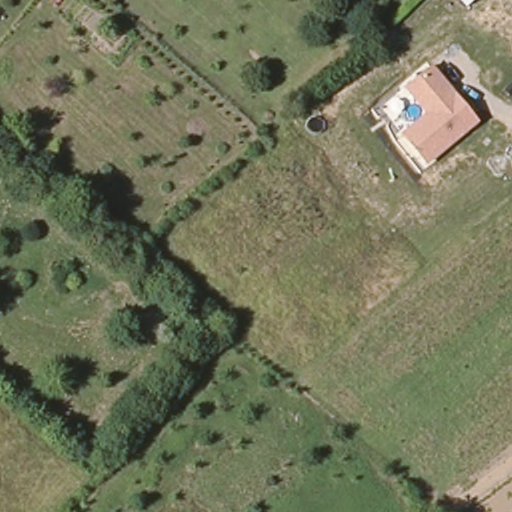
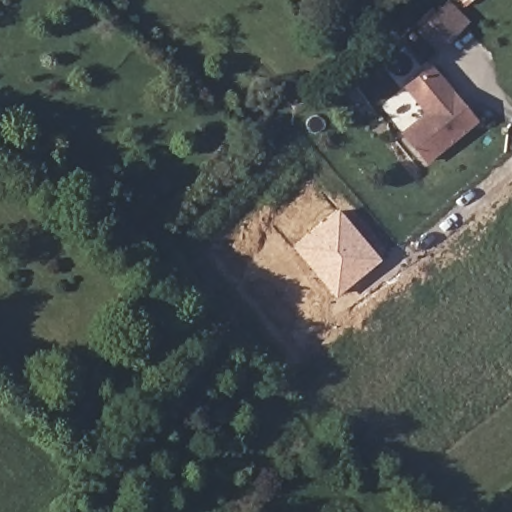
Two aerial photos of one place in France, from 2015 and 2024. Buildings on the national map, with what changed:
new [(435,53),(415,31),(446,0),(449,0),(470,21),(435,53)]
unchanged [(425,164),(400,133),(424,113),(403,86),(430,64),(478,122),(425,164)]
new [(335,298),(292,247),(338,209),(381,259),(335,298)]

